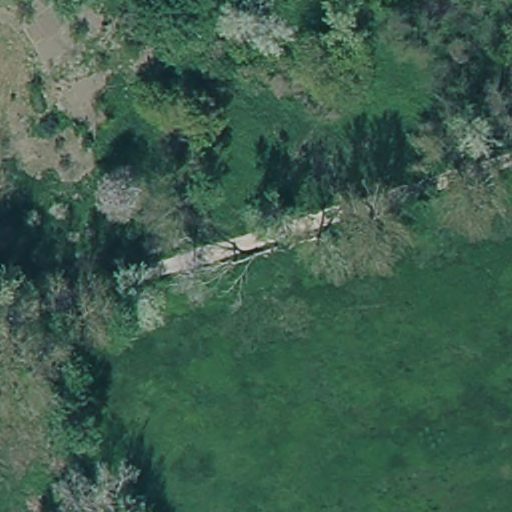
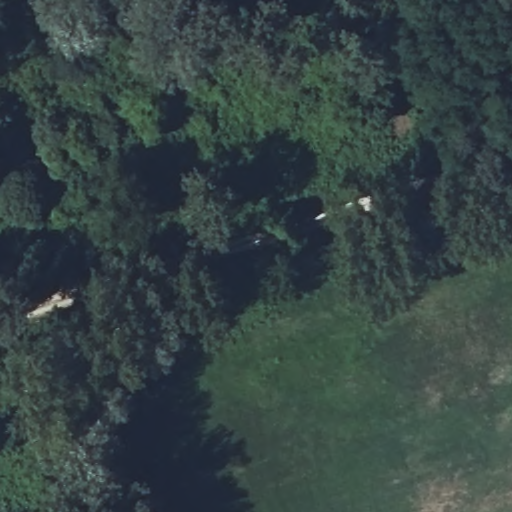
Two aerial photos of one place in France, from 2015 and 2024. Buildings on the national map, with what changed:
unchanged [(24,117),(18,100),(38,92),(44,110),(24,117)]

